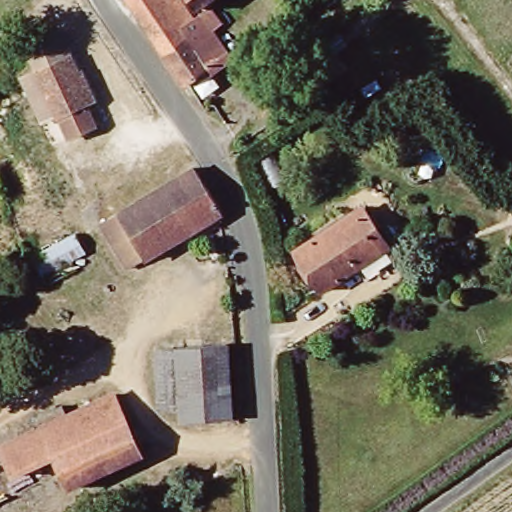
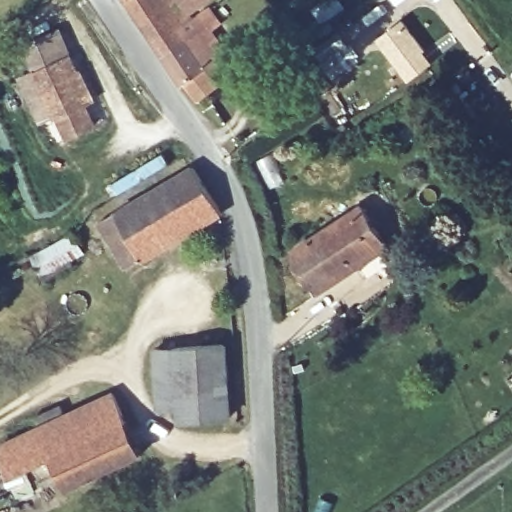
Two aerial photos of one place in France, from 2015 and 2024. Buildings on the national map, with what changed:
unchanged [(124,0),(177,0),(189,16),(175,27),(179,33),(159,49),(124,0)]
unchanged [(187,0),(203,0),(193,7),(187,0)]
unchanged [(183,81),(160,51),(182,35),(179,33),(175,27),(189,16),(205,5),(216,19),(210,29),(231,57),(212,71),(208,66),(183,81)]
new [(426,66),(412,77),(381,36),(404,19),(426,48),(424,50),(433,61),(426,66)]
unchanged [(79,72),(93,98),(86,103),(95,122),(64,132),(59,119),(51,102),(35,72),(70,54),(79,72)]
unchanged [(291,74),(305,96),(279,114),(264,91),(291,74)]
unchanged [(221,213),(133,262),(121,267),(93,224),(196,167),(221,213)]
unchanged [(394,258),(363,276),(355,260),(318,285),(316,287),(292,247),(355,203),(382,242),(383,241),(394,258)]
unchanged [(72,230),(84,248),(68,257),(73,263),(45,277),(29,256),(72,230)]
unchanged [(155,346),(225,343),(228,392),(159,395),(155,346)]
unchanged [(228,392),(231,417),(182,420),(181,410),(160,411),(159,395),(228,392)]
unchanged [(57,406),(63,417),(111,396),(136,454),(64,486),(50,455),(7,472),(0,453),(0,447),(38,431),(32,419),(57,406)]

